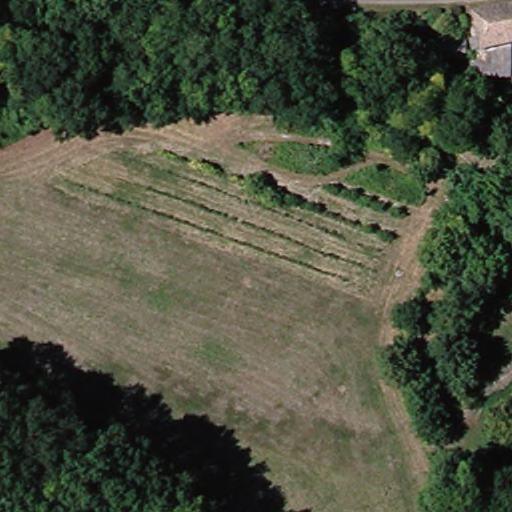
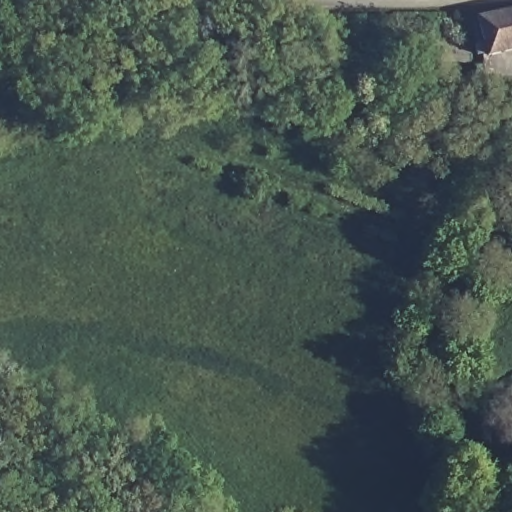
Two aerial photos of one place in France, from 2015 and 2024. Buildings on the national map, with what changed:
unchanged [(506,44),(507,81),(460,82),(460,65),(474,63),(472,1),(477,0),(512,0),(512,43),(506,44)]
unchanged [(477,94),(477,109),(455,110),(454,95),(477,94)]

